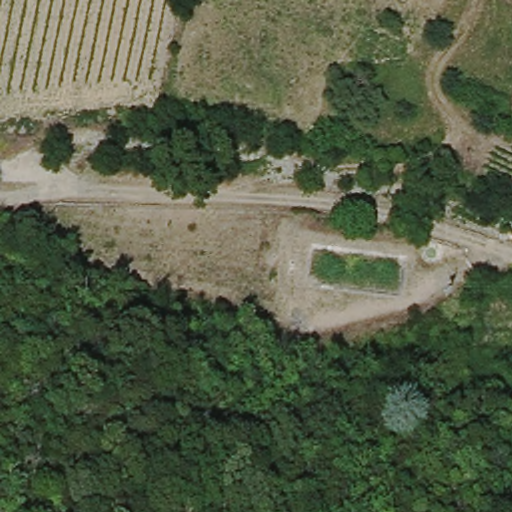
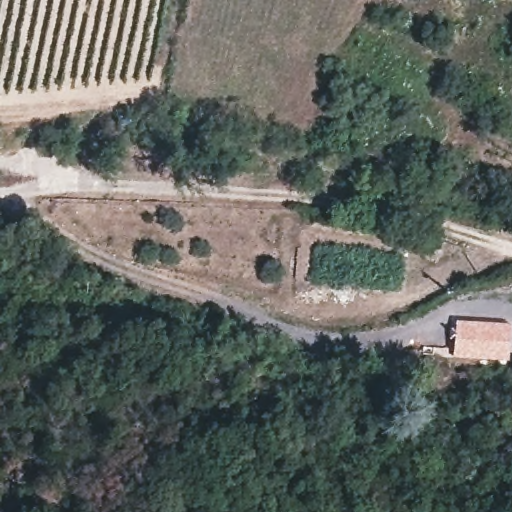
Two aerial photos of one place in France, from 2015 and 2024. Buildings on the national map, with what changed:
new [(455,357),(457,320),(511,323),(508,360),(455,357)]

